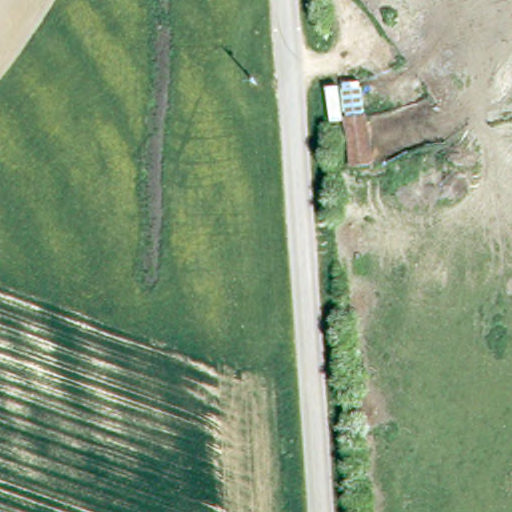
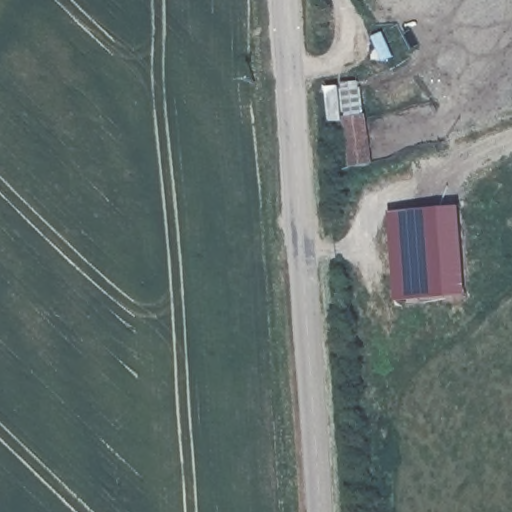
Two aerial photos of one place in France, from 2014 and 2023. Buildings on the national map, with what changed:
unchanged [(335,77),(362,75),(367,163),(346,164),(335,77)]
new [(462,208),(468,297),(398,301),(392,212),(462,208)]

